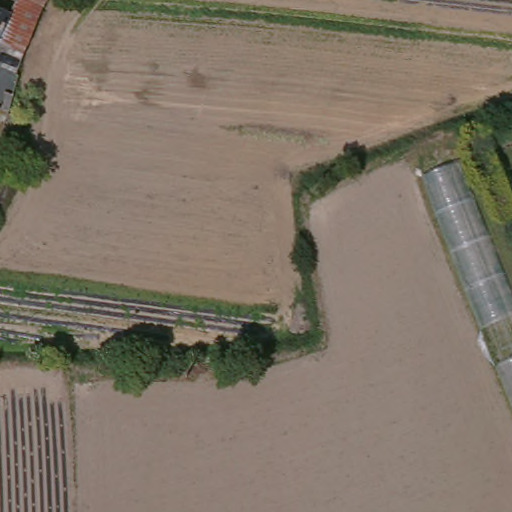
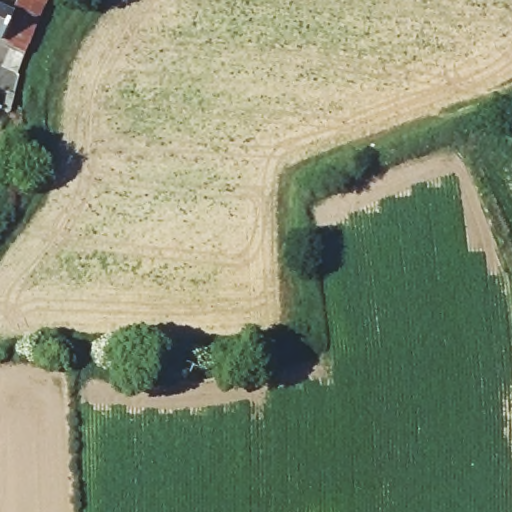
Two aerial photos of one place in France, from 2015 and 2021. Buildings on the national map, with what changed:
unchanged [(9,23),(18,4),(19,0),(51,0),(43,16),(24,62),(0,52),(0,19),(9,23)]
demolished [(512,307),(512,407),(421,178),(451,161),(512,307)]

